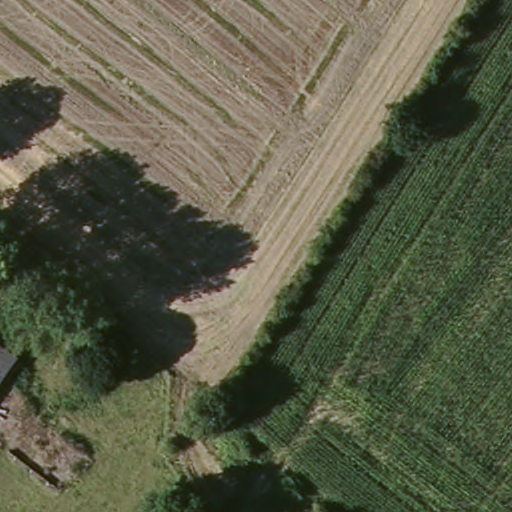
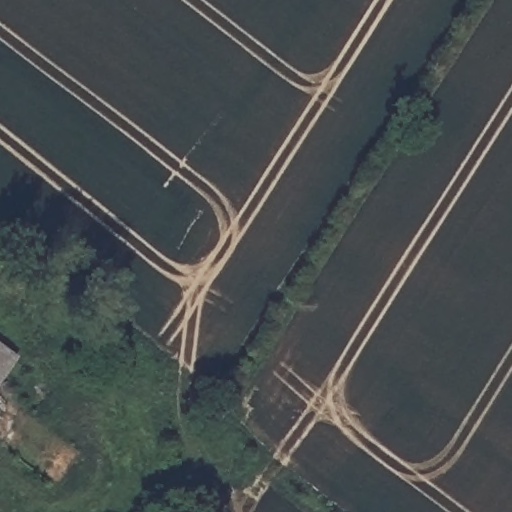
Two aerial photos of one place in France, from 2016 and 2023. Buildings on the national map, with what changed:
unchanged [(0,373),(0,346),(12,356),(0,373)]

